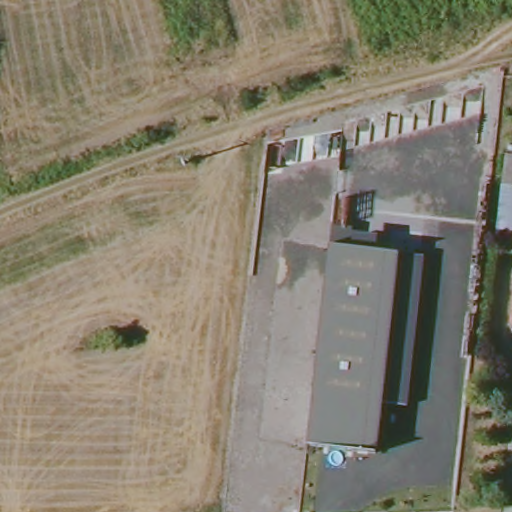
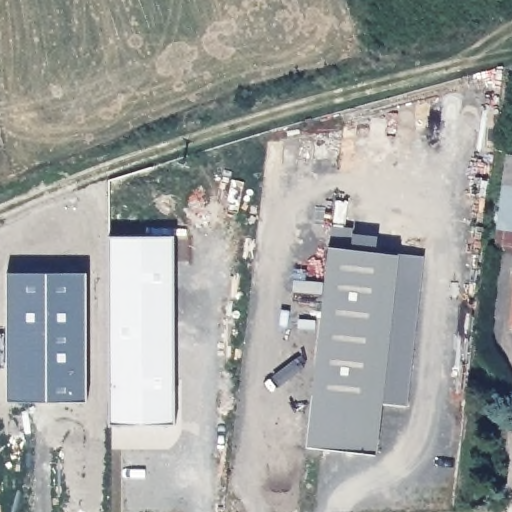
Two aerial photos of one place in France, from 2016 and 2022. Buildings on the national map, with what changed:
unchanged [(488,228),(494,177),(512,179),(512,230),(488,228)]
unchanged [(331,246),(334,227),(356,229),(356,234),(379,238),(377,252),(400,254),(426,257),(410,409),(384,405),(378,453),(308,447),(331,246)]
new [(177,240),(177,428),(111,428),(110,240),(177,240)]
new [(10,404),(9,277),(88,275),(89,404),(10,404)]

